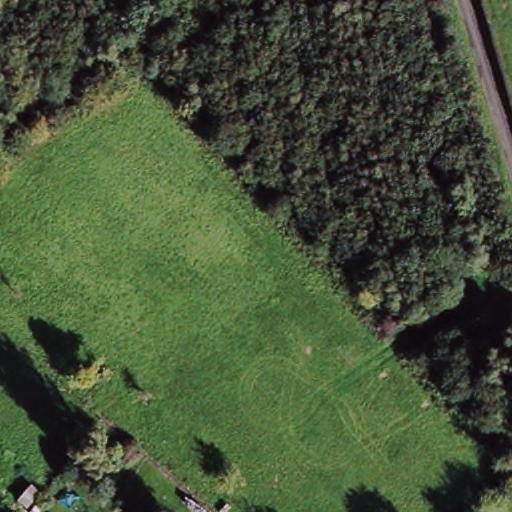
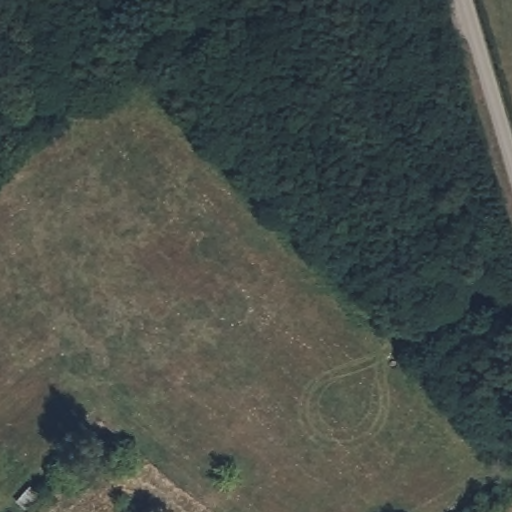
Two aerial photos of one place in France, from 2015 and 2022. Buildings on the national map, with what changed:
[]

